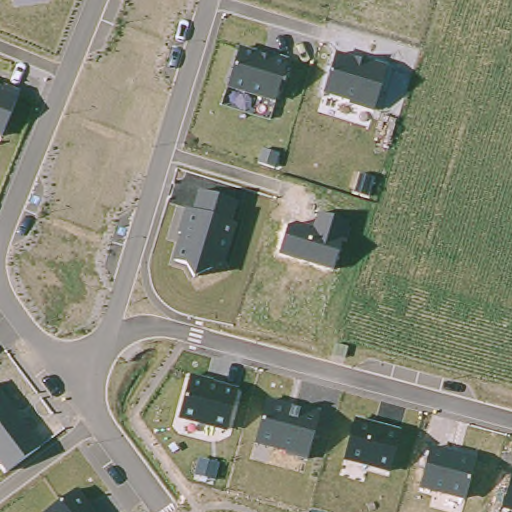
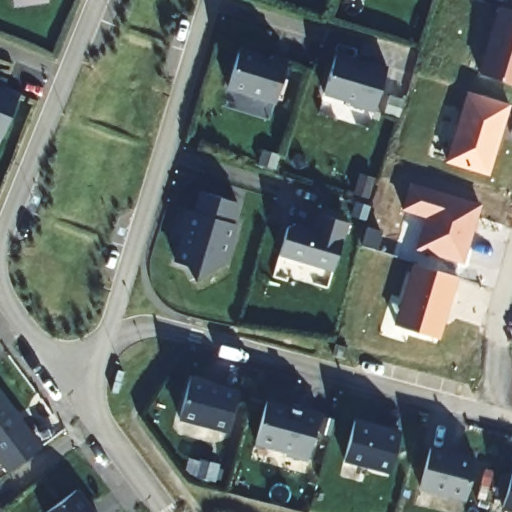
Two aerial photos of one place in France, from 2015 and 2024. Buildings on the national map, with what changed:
new [(479,73),(498,6),(512,11),(512,85),(479,73)]
unchanged [(287,61),(276,103),(227,89),(240,47),(287,61)]
unchanged [(385,67),(372,111),(348,105),(350,101),(323,94),(335,53),(385,67)]
unchanged [(1,138),(0,138),(0,87),(17,93),(1,138)]
new [(445,161),(467,91),(510,104),(488,175),(445,161)]
new [(462,264),(414,249),(424,218),(400,210),(409,181),(481,204),(462,264)]
unchanged [(238,201),(233,223),(237,224),(226,265),(194,279),(185,263),(175,260),(181,234),(177,233),(183,210),(192,212),(198,190),(238,201)]
unchanged [(285,228),(295,224),(314,229),(318,213),(347,221),(333,271),(278,256),(285,228)]
new [(395,323),(412,262),(458,276),(439,338),(395,323)]
unchanged [(238,389),(227,433),(177,421),(188,376),(238,389)]
unchanged [(7,473),(0,463),(0,389),(42,445),(7,473)]
unchanged [(320,413),(309,458),(255,444),(267,400),(320,413)]
unchanged [(401,432),(390,473),(343,461),(354,419),(401,432)]
unchanged [(477,456),(467,501),(420,490),(430,446),(477,456)]
unchanged [(502,509),(512,471),(512,512),(511,512),(502,509)]
unchanged [(96,512),(45,512),(77,487),(96,512)]

